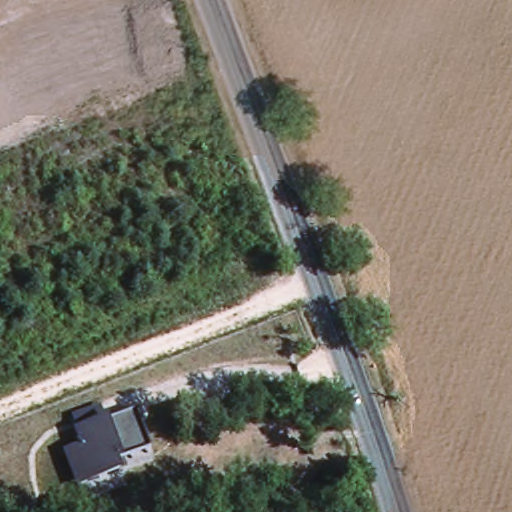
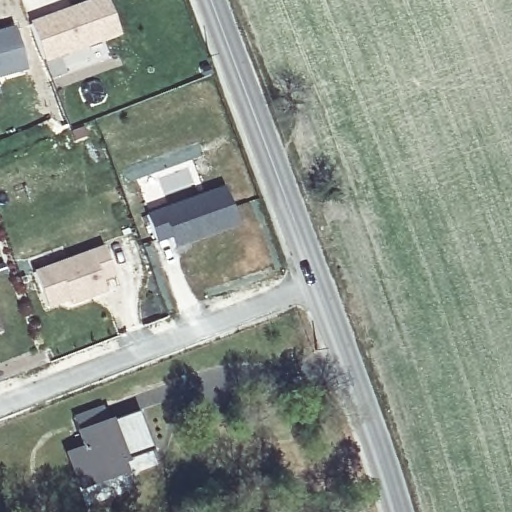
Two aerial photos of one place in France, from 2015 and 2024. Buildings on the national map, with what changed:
new [(92,0),(108,0),(118,30),(46,57),(33,22),(92,0)]
new [(14,27),(25,69),(0,77),(0,30),(14,27)]
new [(224,187),(237,222),(173,245),(170,235),(155,240),(147,215),(224,187)]
new [(103,246),(113,273),(100,278),(105,289),(70,301),(67,294),(62,296),(62,299),(46,305),(34,271),(103,246)]
unchanged [(82,448),(77,430),(73,417),(104,405),(113,420),(139,411),(152,451),(123,461),(127,474),(75,492),(65,453),(82,448)]

